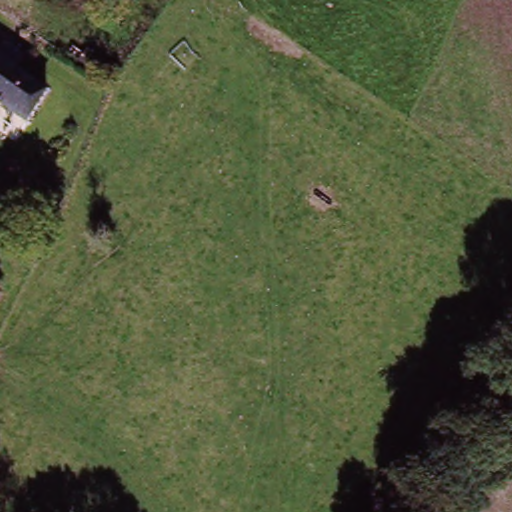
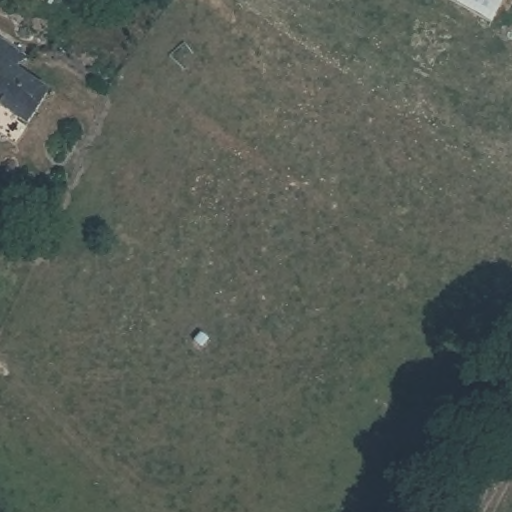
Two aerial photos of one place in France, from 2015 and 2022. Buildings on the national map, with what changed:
new [(492,25),(448,0),(507,0),(492,25)]
unchanged [(0,45),(0,40),(2,41),(0,45)]
unchanged [(15,71),(48,94),(27,125),(0,107),(0,45),(24,60),(15,71)]

